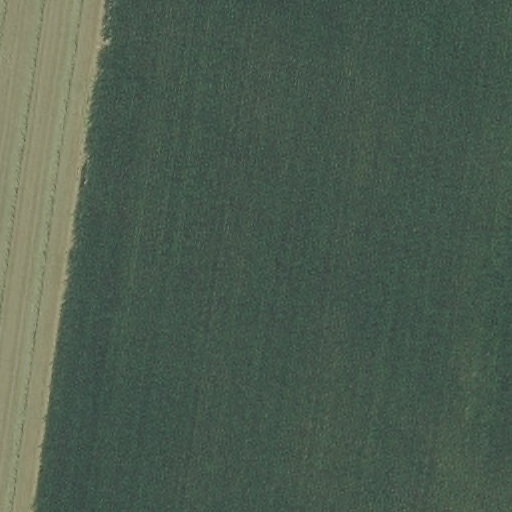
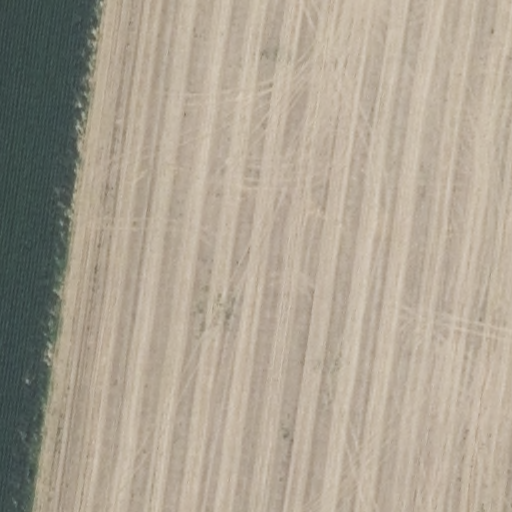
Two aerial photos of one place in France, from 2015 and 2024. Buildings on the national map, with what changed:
[]

